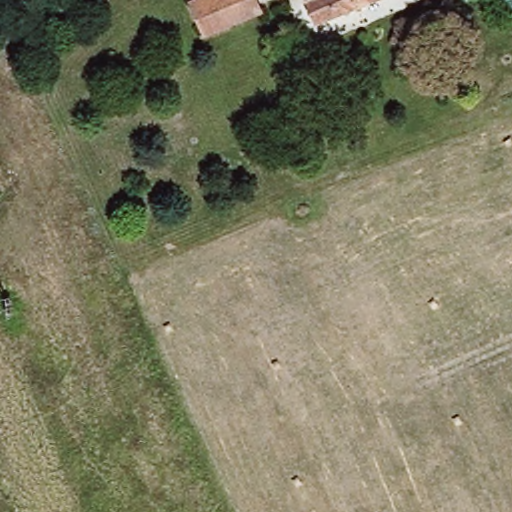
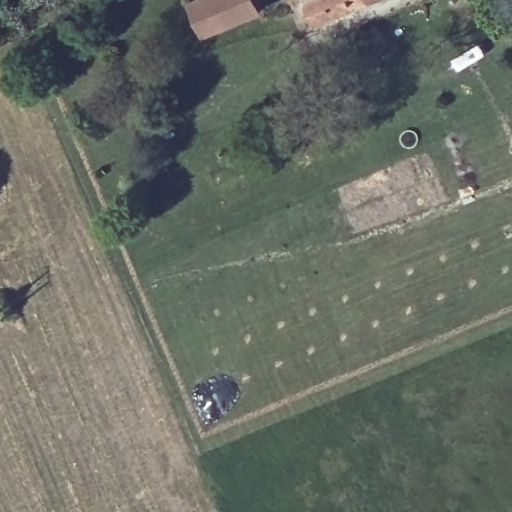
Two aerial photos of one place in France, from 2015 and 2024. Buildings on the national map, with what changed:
unchanged [(261,10),(206,32),(192,1),(195,0),(257,0),(261,10)]
unchanged [(316,22),(307,0),(368,0),(316,22)]

